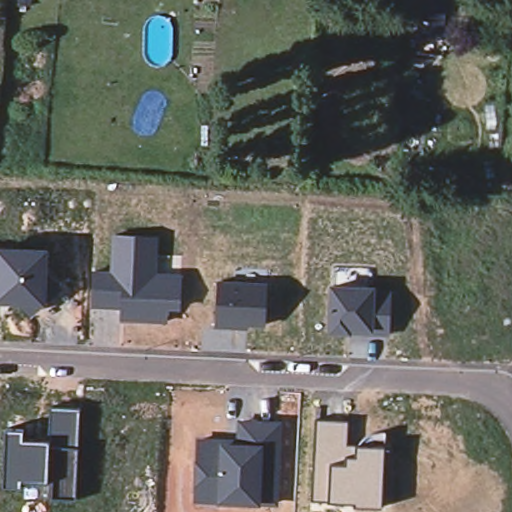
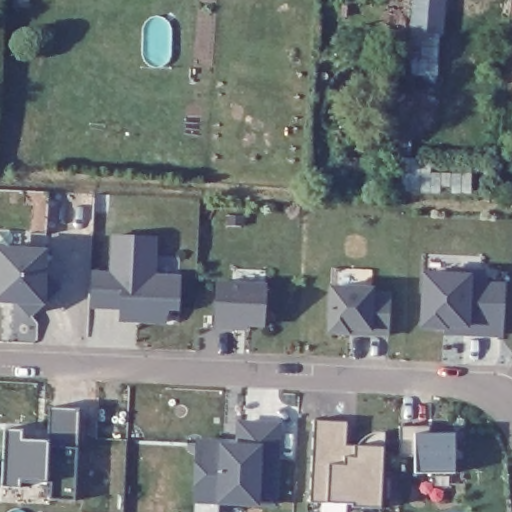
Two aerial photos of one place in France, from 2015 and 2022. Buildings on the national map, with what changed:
unchanged [(160,235),(157,270),(183,271),(182,311),(169,310),(168,323),(120,321),(120,309),(87,306),(90,269),(112,269),(113,232),(160,235)]
unchanged [(49,270),(67,288),(33,319),(14,300),(0,301),(0,244),(50,246),(49,270)]
new [(502,336),(445,335),(445,328),(420,328),(422,271),(445,273),(445,268),(487,270),(486,284),(504,285),(502,336)]
unchanged [(268,280),(267,326),(249,326),(248,329),(215,328),(217,278),(268,280)]
unchanged [(393,285),(391,335),(325,331),(327,282),(393,285)]
unchanged [(23,428),(23,437),(48,438),(52,405),(82,406),(77,501),(47,500),(47,480),(23,479),(22,487),(2,485),(5,428),(23,428)]
unchanged [(348,419),(347,442),(357,442),(363,436),(372,432),(387,429),(382,506),(353,505),(353,500),(311,499),(316,416),(348,419)]
unchanged [(237,436),(237,418),(280,421),(277,506),(190,503),(193,435),(237,436)]
new [(429,426),(429,434),(455,434),(455,474),(415,474),(414,456),(399,456),(398,426),(422,426),(429,426)]

